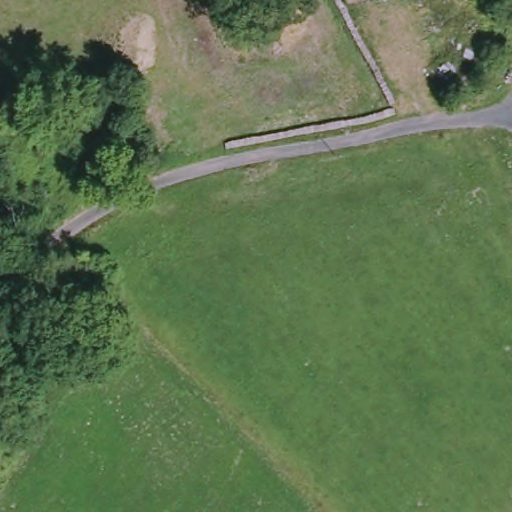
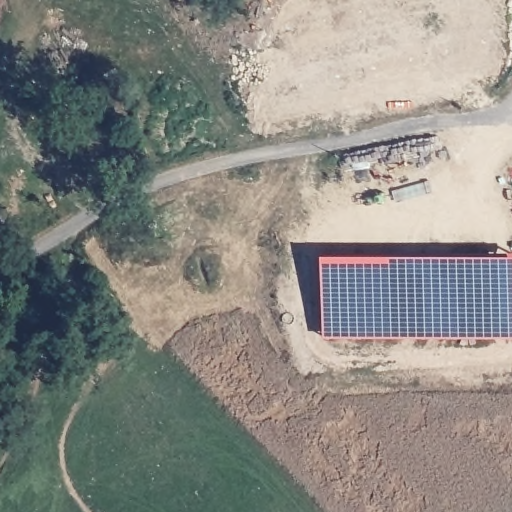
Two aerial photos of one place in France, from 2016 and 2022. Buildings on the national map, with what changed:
new [(320,256),(512,259),(512,333),(323,333),(320,256)]

